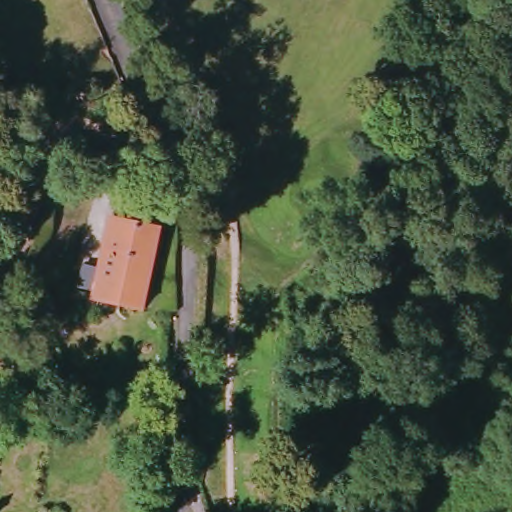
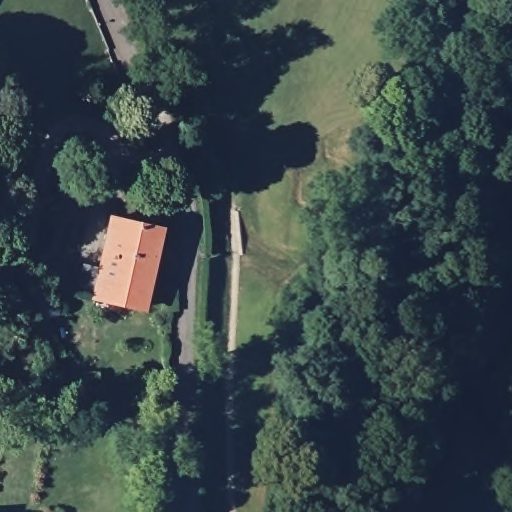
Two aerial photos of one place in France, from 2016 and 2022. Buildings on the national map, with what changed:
unchanged [(94,301),(112,223),(137,226),(160,231),(160,233),(145,311),(94,301)]

